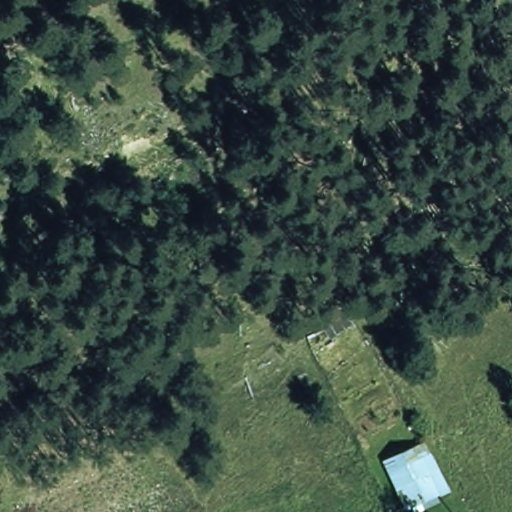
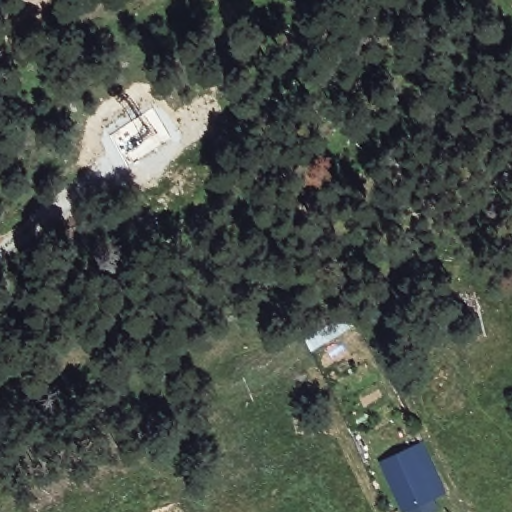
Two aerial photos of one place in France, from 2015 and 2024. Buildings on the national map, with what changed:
unchanged [(441,497),(418,512),(397,512),(375,465),(418,446),(441,497)]

